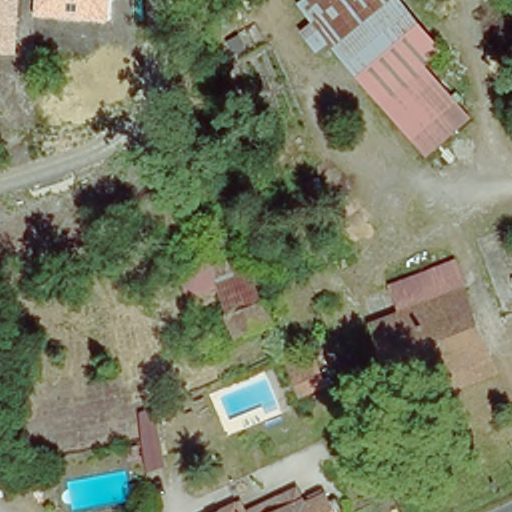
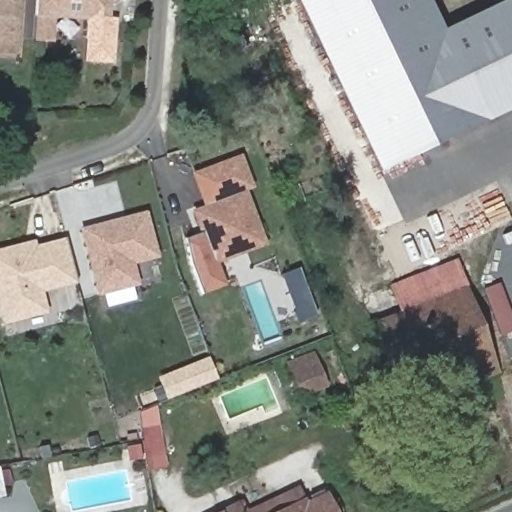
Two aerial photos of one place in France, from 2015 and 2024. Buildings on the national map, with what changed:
unchanged [(0,54),(0,0),(20,0),(17,55),(0,54)]
unchanged [(34,17),(36,0),(110,0),(109,21),(34,17)]
new [(509,0),(512,0),(512,112),(388,169),(305,0),(437,0),(450,29),(509,0)]
new [(211,266),(191,211),(220,200),(207,166),(240,154),(254,187),(246,190),(266,245),(211,266)]
new [(134,265),(139,285),(96,296),(79,227),(146,210),(159,258),(134,265)]
new [(0,320),(0,249),(33,240),(34,245),(63,236),(75,284),(41,292),(47,313),(1,325),(0,320)]
unchanged [(398,281),(462,257),(471,284),(408,308),(398,281)]
demolished [(238,335),(221,294),(217,285),(222,281),(252,269),(273,321),(238,335)]
unchanged [(471,284),(501,363),(410,398),(380,318),(408,308),(471,284)]
demolished [(190,350),(186,352),(184,346),(192,343),(195,348),(190,350)]
unchanged [(279,361),(282,360),(303,351),(316,383),(292,393),(279,361)]
unchanged [(148,473),(140,413),(155,409),(167,466),(148,473)]
unchanged [(0,501),(0,477),(4,500),(0,501)]
unchanged [(320,496),(323,495),(331,512),(240,512),(252,507),(251,504),(283,490),(293,485),(300,498),(302,504),(320,496)]
unchanged [(232,501),(236,512),(208,512),(232,501)]

